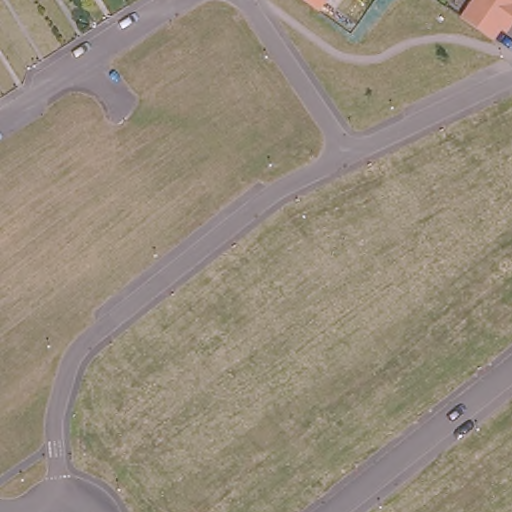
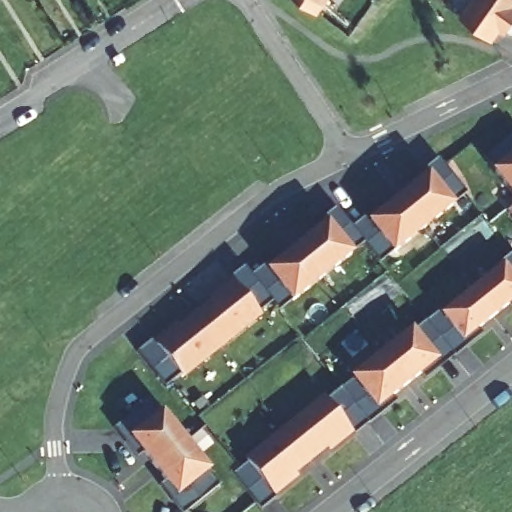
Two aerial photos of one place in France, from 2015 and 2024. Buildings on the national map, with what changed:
unchanged [(316,9),(303,0),(327,0),(319,11),(316,9)]
unchanged [(472,5),(476,0),(512,0),(512,24),(506,33),(500,29),(500,31),(493,40),(463,19),(462,19),(472,5)]
new [(493,170),(483,157),(512,135),(512,195),(493,170)]
new [(455,206),(393,253),(378,264),(363,244),(351,254),(292,301),(277,311),(270,303),(258,313),(262,318),(182,379),(179,375),(165,386),(139,351),(177,323),(178,325),(210,301),(206,298),(243,269),(252,278),(267,268),(322,225),(318,222),(336,209),(353,228),(368,220),(422,177),(420,173),(438,160),(465,194),(455,206)]
new [(508,305),(478,329),(482,335),(425,379),(422,375),(393,397),(397,402),(354,434),(329,453),(327,449),(296,474),(300,478),(260,509),(232,473),(247,462),(245,458),(325,396),(327,400),(354,380),(351,376),(412,328),(415,333),(440,314),(502,263),(512,255),(512,310),(508,305)]
new [(179,512),(162,488),(167,485),(141,453),(136,456),(115,427),(150,401),(160,414),(163,411),(210,472),(206,475),(218,489),(187,512),(179,512)]

